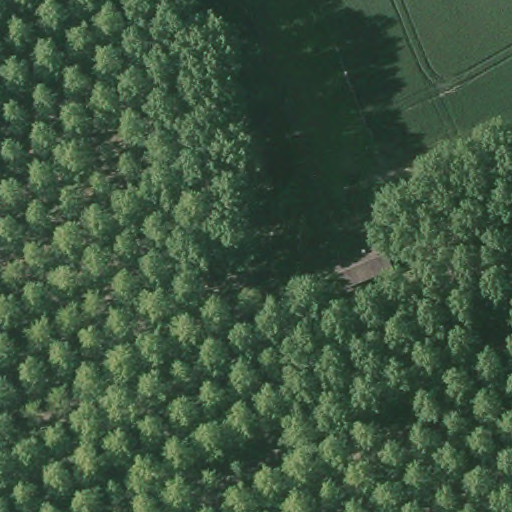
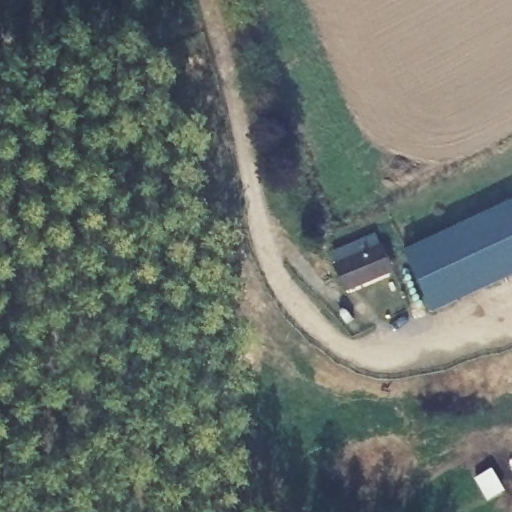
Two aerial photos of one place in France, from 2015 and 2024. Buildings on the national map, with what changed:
new [(512,204),(512,277),(432,314),(405,255),(512,204)]
unchanged [(382,248),(390,271),(345,287),(335,264),(382,248)]

